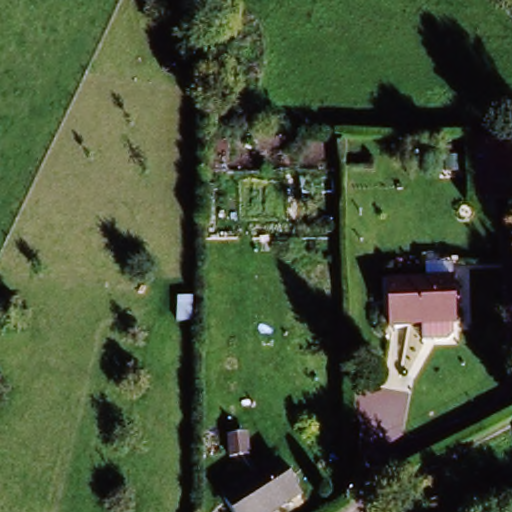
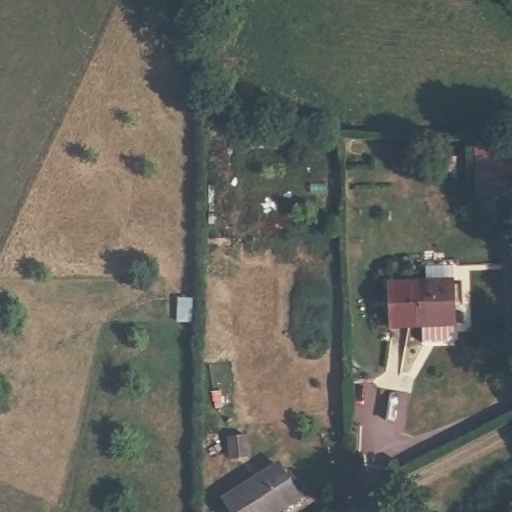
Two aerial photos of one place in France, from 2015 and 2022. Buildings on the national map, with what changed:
unchanged [(508,140),(509,198),(473,200),(472,139),(508,140)]
unchanged [(450,278),(468,278),(470,308),(452,309),(452,321),(387,325),(384,280),(451,276),(450,278)]
unchanged [(272,459),(294,489),(261,512),(229,512),(219,497),(272,459)]

